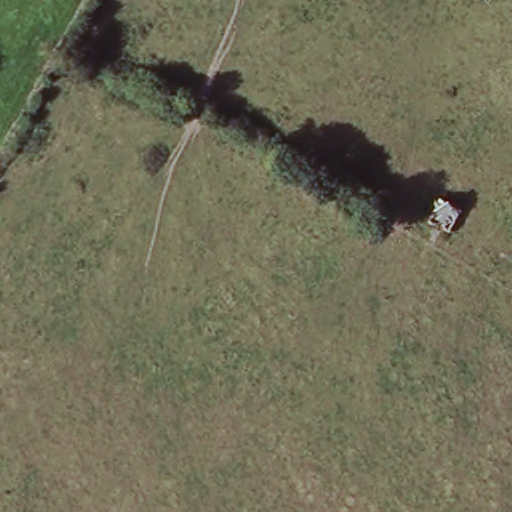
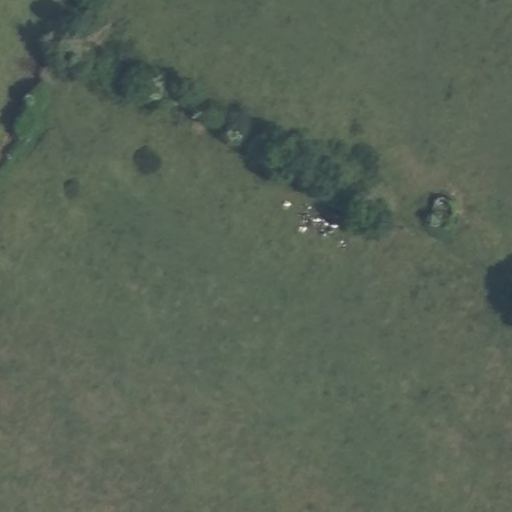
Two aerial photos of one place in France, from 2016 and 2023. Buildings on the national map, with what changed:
unchanged [(426,221),(441,196),(463,210),(450,237),(426,221)]

